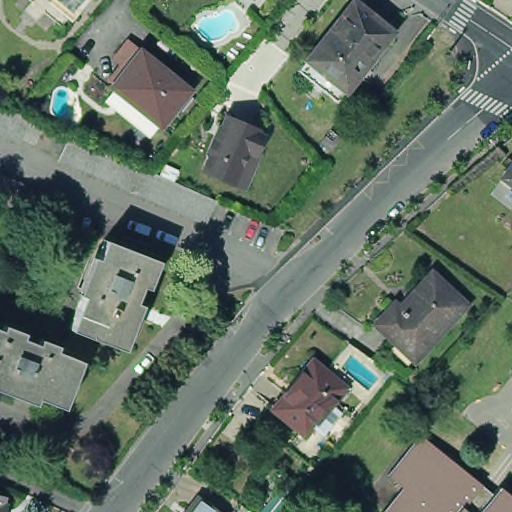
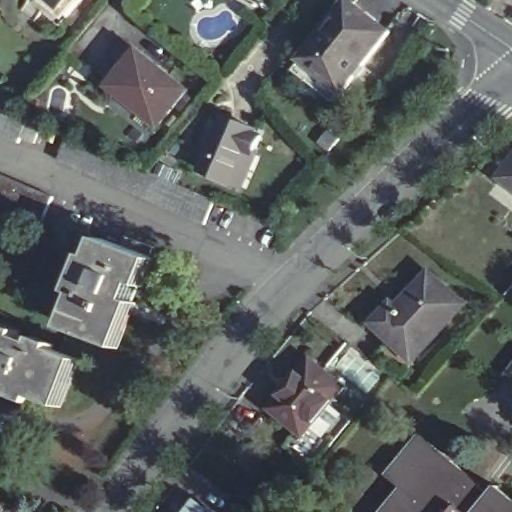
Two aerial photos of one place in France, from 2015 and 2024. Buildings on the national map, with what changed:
unchanged [(78,0),(73,5),(65,14),(48,0),(78,0)]
unchanged [(310,54),(353,0),(363,0),(396,26),(350,84),(342,95),(302,64),(310,54)]
unchanged [(165,125),(116,85),(130,68),(117,59),(131,40),(144,50),(194,90),(165,125)]
unchanged [(0,130),(0,101),(15,107),(29,113),(19,138),(0,130)]
unchanged [(267,134),(246,192),(202,176),(220,111),(267,134)]
unchanged [(347,129),(329,149),(319,141),(337,120),(347,129)]
unchanged [(155,165),(155,166),(191,182),(220,194),(209,219),(63,155),(73,130),(155,165)]
unchanged [(499,177),(512,160),(512,187),(499,177)]
unchanged [(43,221),(0,203),(0,174),(53,197),(43,221)]
unchanged [(147,245),(165,252),(127,349),(80,330),(95,290),(89,288),(107,238),(144,252),(147,245)]
unchanged [(417,366),(377,328),(397,305),(402,311),(435,275),(470,309),(417,366)]
unchanged [(39,398),(0,383),(0,314),(25,324),(23,330),(79,352),(61,399),(41,392),(39,398)]
unchanged [(302,447),(267,417),(310,367),(345,397),(302,447)]
unchanged [(406,488),(391,475),(424,434),(495,494),(502,485),(512,493),(512,512),(386,512),(406,488)]
unchanged [(0,507),(0,495),(3,496),(0,507)]
unchanged [(202,501),(216,512),(193,512),(202,501)]

